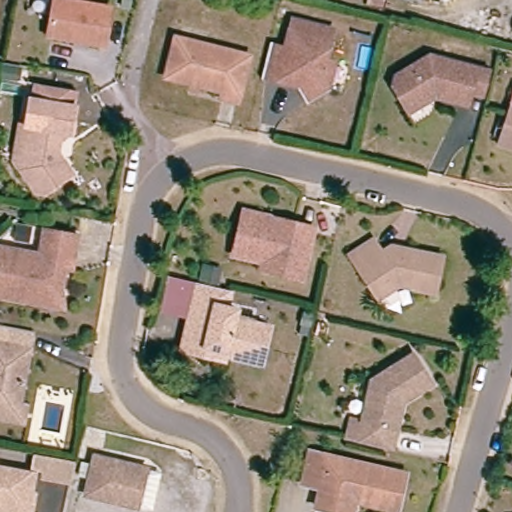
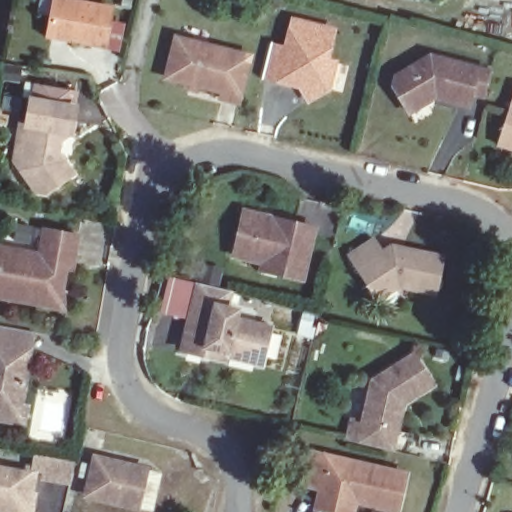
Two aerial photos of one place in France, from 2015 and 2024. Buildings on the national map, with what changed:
unchanged [(107,45),(50,36),(56,0),(66,0),(113,8),(107,45)]
unchanged [(329,34),(322,64),(331,66),(325,94),(305,104),(299,91),(259,80),(267,48),(268,43),(284,46),(290,23),(329,34)]
unchanged [(160,80),(169,41),(242,60),(231,108),(213,104),(215,96),(160,80)]
unchanged [(430,93),(406,109),(390,84),(392,74),(425,53),(474,65),(488,69),(482,92),(466,89),(463,100),(430,93)]
unchanged [(13,85),(12,96),(0,94),(1,84),(13,85)]
unchanged [(56,86),(57,86),(78,90),(75,107),(70,136),(60,143),(59,154),(77,179),(54,195),(40,193),(14,160),(26,150),(30,123),(38,84),(56,86)]
unchanged [(493,148),(512,90),(512,153),(493,148)]
unchanged [(262,267),(232,259),(242,215),(294,228),(311,232),(309,239),(300,284),(280,279),(261,274),(262,267)]
unchanged [(0,302),(0,250),(37,259),(42,233),(76,239),(72,264),(71,273),(63,272),(60,289),(62,315),(17,305),(0,302)]
unchanged [(434,304),(399,297),(380,309),(350,267),(376,249),(385,263),(388,260),(394,258),(404,259),(443,270),(434,304)]
unchanged [(248,357),(218,350),(217,354),(201,350),(179,346),(193,280),(196,265),(198,260),(218,265),(217,270),(214,285),(226,289),(224,305),(233,307),(231,316),(264,323),(261,340),(257,359),(248,357)]
unchanged [(21,413),(19,425),(0,422),(0,335),(24,340),(34,342),(21,413)]
unchanged [(355,419),(364,379),(408,352),(426,384),(406,398),(397,403),(396,408),(387,449),(342,439),(346,418),(355,419)]
unchanged [(309,505),(312,494),(314,486),(297,482),(305,451),(399,473),(391,509),(356,501),(347,499),(345,507),(343,512),(339,512),(309,505)]
unchanged [(144,512),(142,512),(129,509),(78,499),(86,461),(137,471),(152,474),(144,512)]
unchanged [(32,497),(35,498),(32,512),(0,512),(0,470),(35,477),(32,497)]

